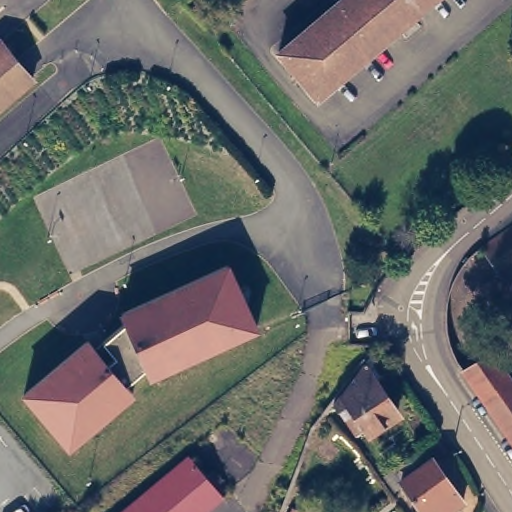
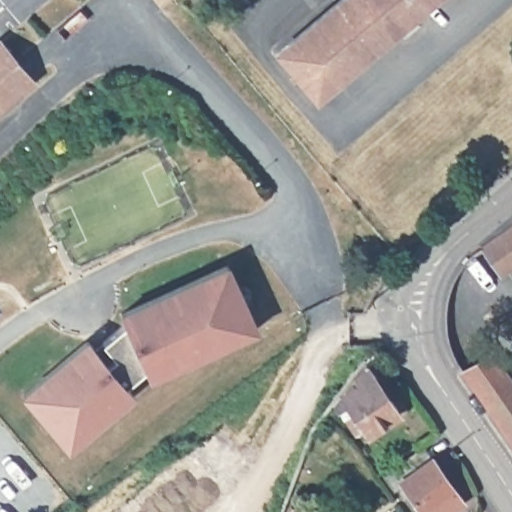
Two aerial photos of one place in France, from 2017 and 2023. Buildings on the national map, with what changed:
unchanged [(278,52),(340,0),(433,0),(317,98),(278,52)]
unchanged [(33,80),(0,107),(0,41),(33,80)]
unchanged [(506,275),(487,247),(512,229),(512,271),(506,275)]
unchanged [(151,381),(144,369),(125,387),(132,395),(69,451),(21,397),(87,341),(105,363),(114,357),(101,341),(125,321),(120,310),(229,264),(259,332),(151,381)]
unchanged [(491,352),(512,383),(512,442),(463,372),(491,352)]
unchanged [(371,362),(403,409),(369,432),(368,430),(361,435),(351,420),(358,415),(351,405),(342,411),(338,404),(371,362)]
unchanged [(446,468),(468,498),(457,507),(460,512),(459,512),(430,512),(418,495),(409,502),(398,486),(438,456),(446,468)]
demolished [(208,512),(129,512),(193,458),(226,497),(208,512)]
unchanged [(284,512),(285,510),(293,512),(284,512)]

